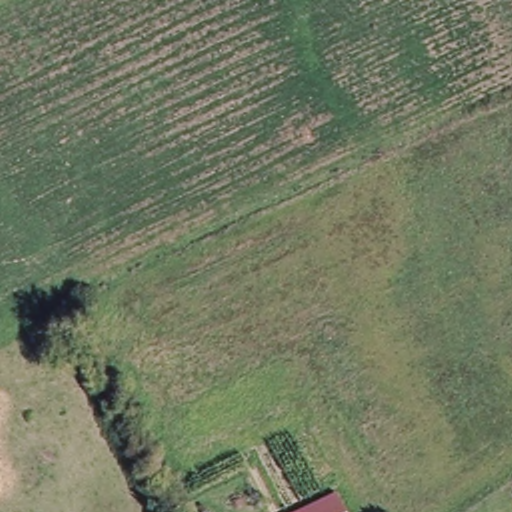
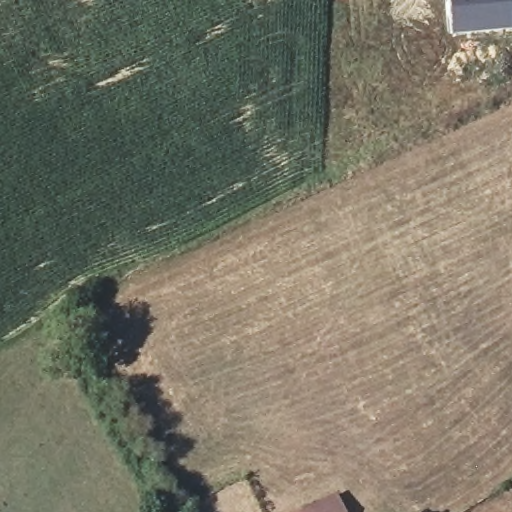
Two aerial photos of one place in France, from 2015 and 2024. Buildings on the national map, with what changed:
new [(452,33),(449,0),(512,0),(512,27),(452,33)]
new [(348,512),(302,512),(338,493),(348,512)]
demolished [(336,495),(347,512),(298,512),(336,495)]

